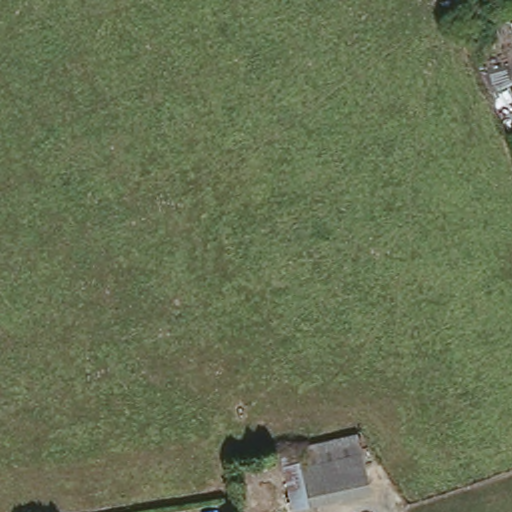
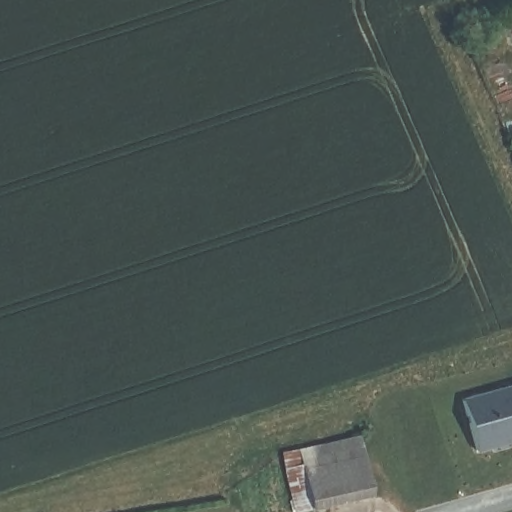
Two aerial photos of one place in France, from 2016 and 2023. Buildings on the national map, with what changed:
new [(512,446),(476,457),(462,403),(512,388),(512,446)]
unchanged [(292,451),(303,448),(361,435),(376,495),(316,508),(306,511),(292,451)]

